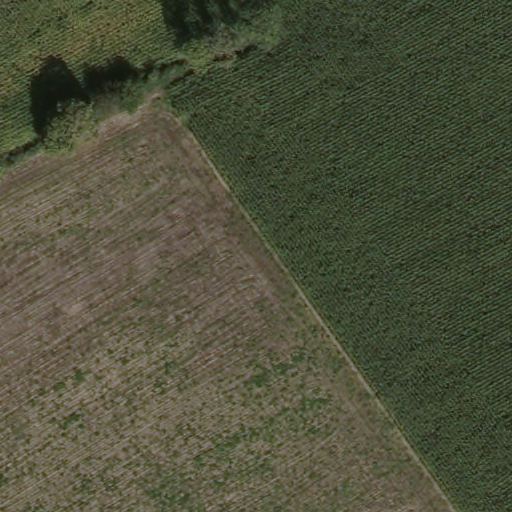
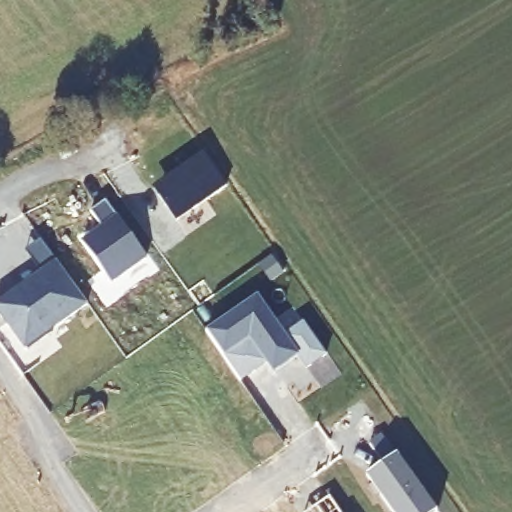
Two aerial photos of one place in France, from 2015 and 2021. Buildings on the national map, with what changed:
new [(149,257),(110,285),(81,240),(102,226),(90,211),(107,199),(149,257)]
new [(89,305),(26,353),(0,315),(0,299),(56,258),(89,305)]
new [(286,332),(304,320),(328,354),(308,368),(299,357),(273,374),(268,366),(242,383),(206,330),(259,293),(286,332)]
new [(439,512),(390,512),(365,477),(398,453),(439,512)]

